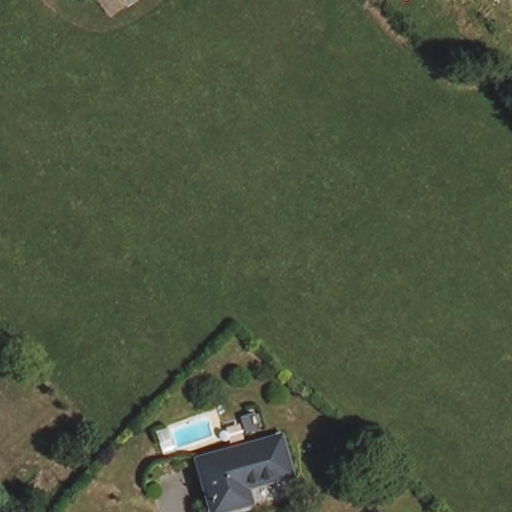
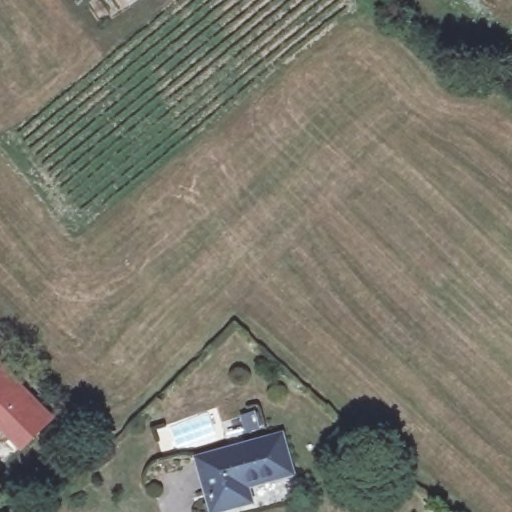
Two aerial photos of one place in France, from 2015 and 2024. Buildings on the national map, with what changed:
new [(22,454),(0,431),(0,361),(57,418),(22,454)]
unchanged [(240,480),(244,497),(204,507),(191,458),(273,436),(282,469),(240,480)]

